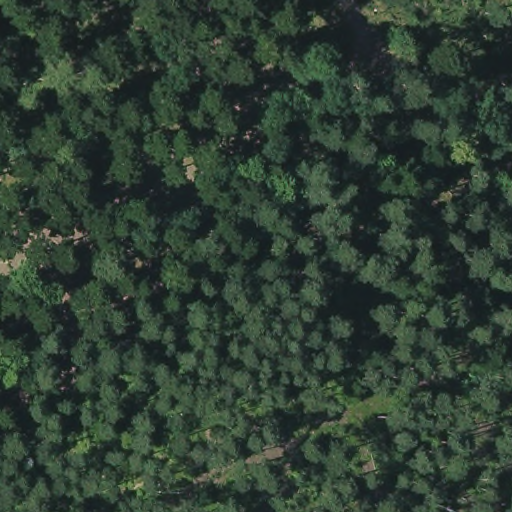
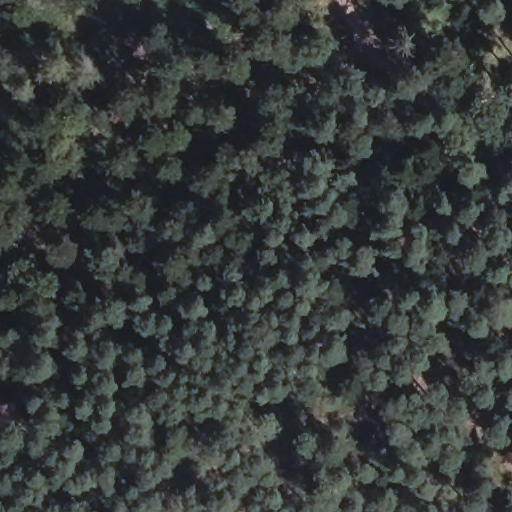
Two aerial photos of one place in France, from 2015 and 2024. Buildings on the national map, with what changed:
unchanged [(323,33),(307,0),(336,0),(348,19),(323,33)]

